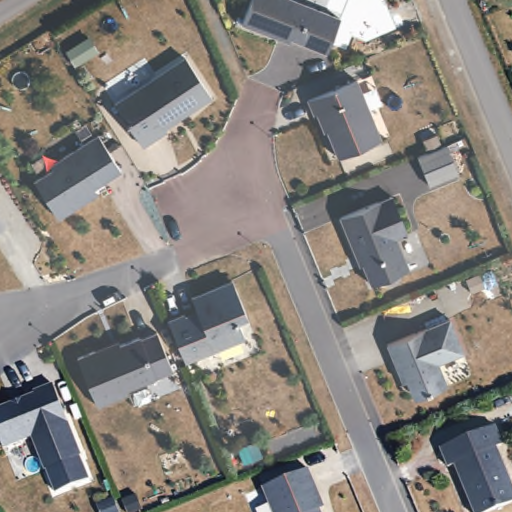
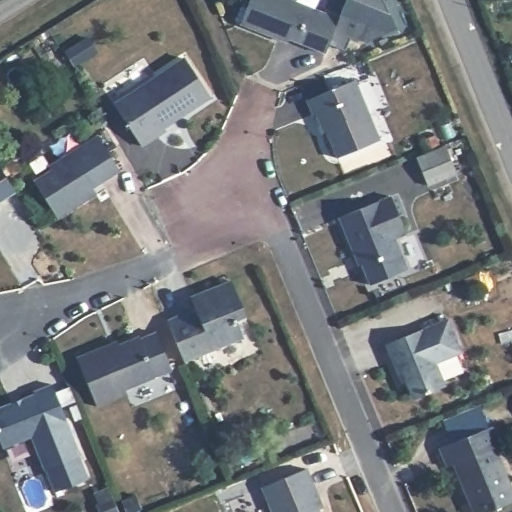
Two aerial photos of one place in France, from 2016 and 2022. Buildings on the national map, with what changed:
unchanged [(333,17),(317,53),(275,35),(273,40),(234,23),(245,0),(291,0),(333,17)]
unchanged [(333,17),(340,0),(381,0),(395,29),(365,43),(352,38),(345,51),(323,40),(333,17)]
unchanged [(185,57),(209,95),(186,111),(180,110),(161,120),(165,130),(140,143),(114,101),(185,57)]
unchanged [(350,81),(375,141),(332,158),(322,130),(316,132),(302,101),(350,81)]
unchanged [(98,135),(121,171),(86,193),(89,200),(58,219),(34,180),(51,170),(49,165),(98,135)]
unchanged [(445,144),(456,172),(428,184),(416,155),(445,144)]
unchanged [(387,191),(403,232),(392,237),(405,268),(365,283),(352,251),(348,252),(334,214),(387,191)]
unchanged [(165,317),(179,312),(180,315),(194,311),(187,291),(225,277),(241,311),(232,315),(241,334),(181,358),(165,317)]
unchanged [(445,317),(460,354),(435,365),(442,385),(410,397),(401,376),(395,377),(382,343),(445,317)]
unchanged [(100,345),(100,347),(140,331),(140,333),(152,330),(170,370),(124,387),(123,396),(97,406),(75,355),(100,345)]
unchanged [(41,465),(27,432),(0,444),(0,402),(29,390),(27,387),(46,379),(76,449),(75,450),(85,472),(52,486),(42,463),(41,465)]
unchanged [(497,448),(492,450),(512,499),(512,501),(483,512),(474,512),(455,466),(445,469),(437,447),(488,428),(497,448)]
unchanged [(303,464),(315,496),(311,497),(317,512),(272,512),(261,481),(303,464)]

